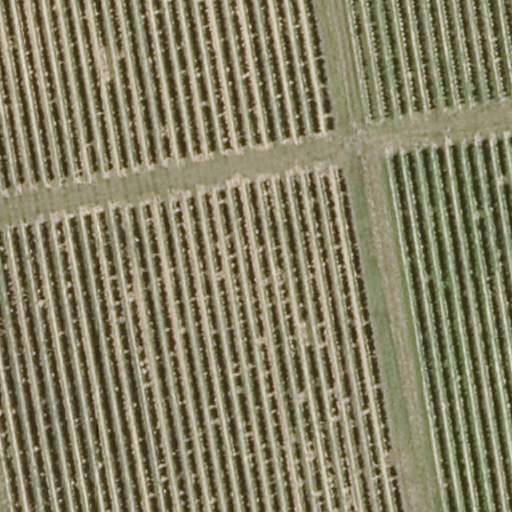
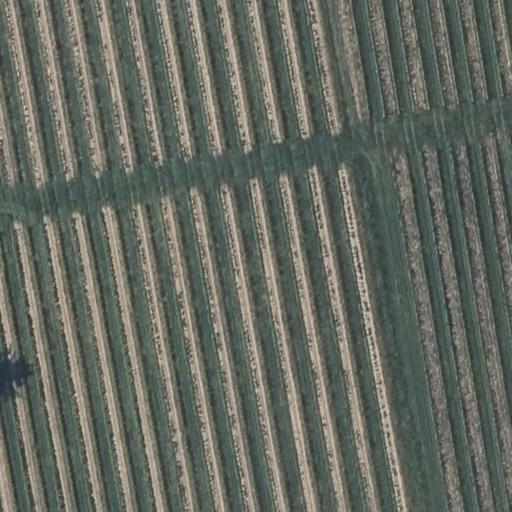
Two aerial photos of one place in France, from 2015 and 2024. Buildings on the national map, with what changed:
[]

